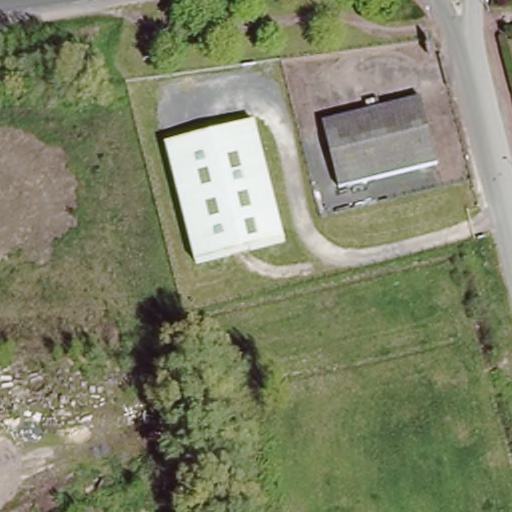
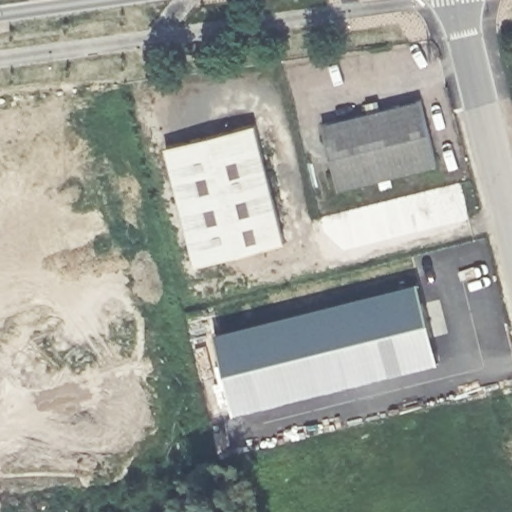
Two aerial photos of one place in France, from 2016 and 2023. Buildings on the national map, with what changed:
unchanged [(434,165),(337,189),(321,124),(367,113),(365,104),(377,100),(380,110),(418,100),(434,165)]
unchanged [(255,124),(285,243),(195,265),(165,148),(255,124)]
new [(415,281),(435,362),(230,414),(210,332),(415,281)]

